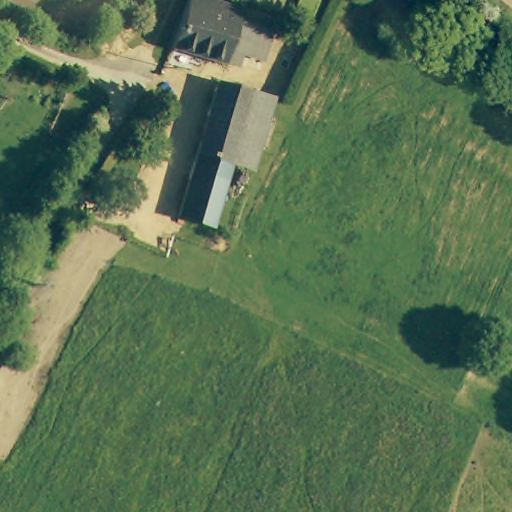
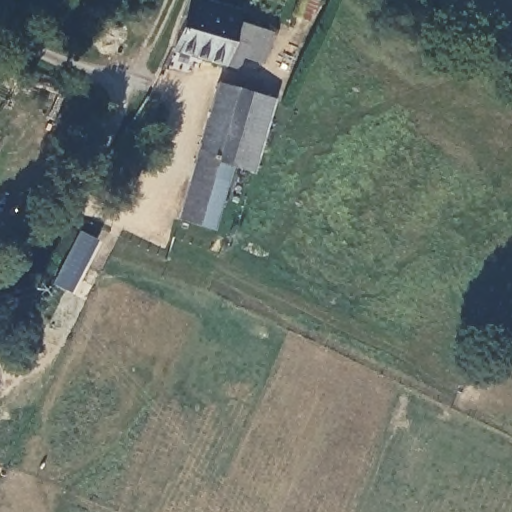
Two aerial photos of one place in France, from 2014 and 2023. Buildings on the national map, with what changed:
unchanged [(275,27),(265,61),(237,52),(234,65),(175,47),(189,0),(231,0),(245,3),(240,17),(275,27)]
unchanged [(197,154),(222,79),(252,90),(228,163),(197,154)]
unchanged [(252,90),(277,99),(251,176),(236,162),(232,165),(228,163),(252,90)]
unchanged [(213,223),(180,212),(197,154),(228,163),(232,165),(213,223)]
new [(70,293),(49,284),(77,230),(96,241),(70,293)]

